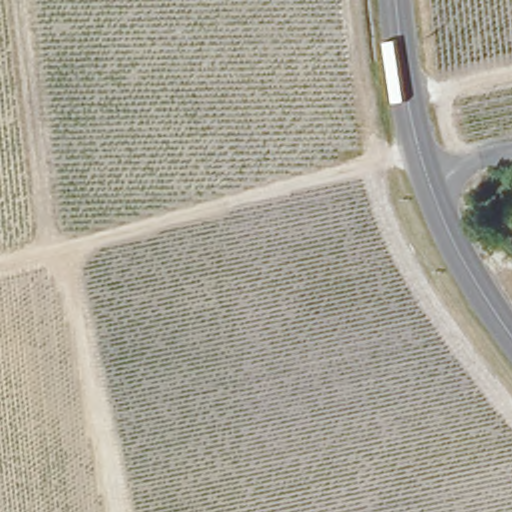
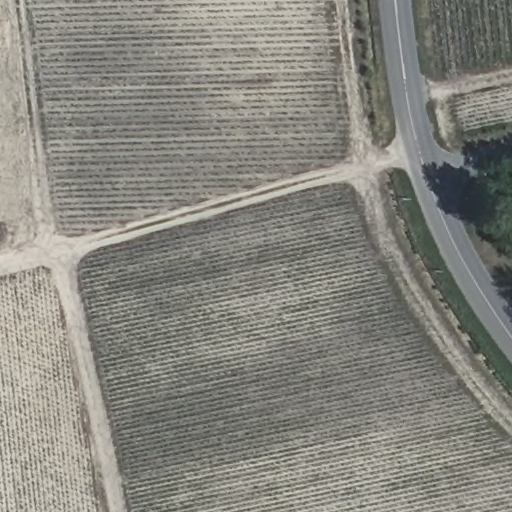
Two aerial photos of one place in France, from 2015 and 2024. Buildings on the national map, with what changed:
[]

